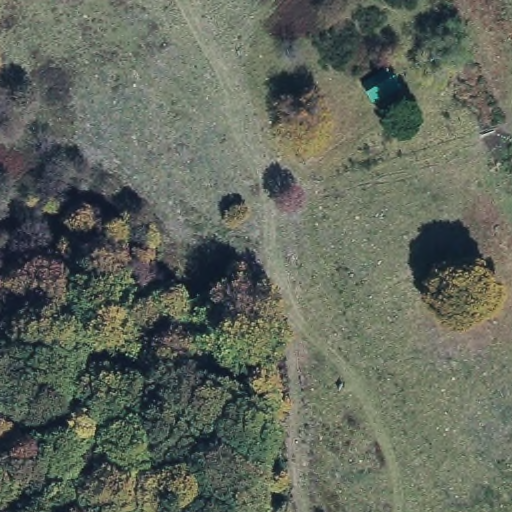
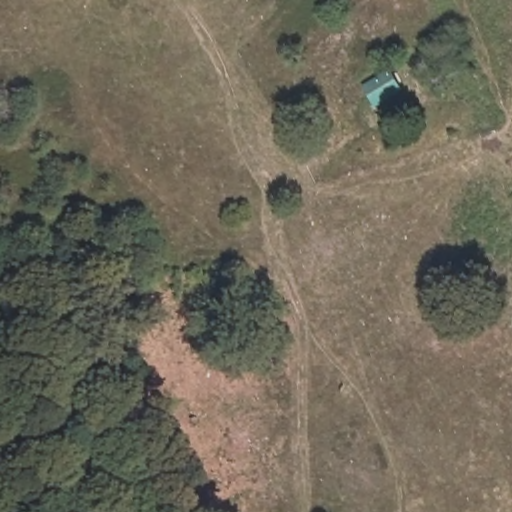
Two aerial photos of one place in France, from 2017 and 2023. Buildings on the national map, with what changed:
unchanged [(360,85),(393,68),(405,92),(371,107),(360,85)]

